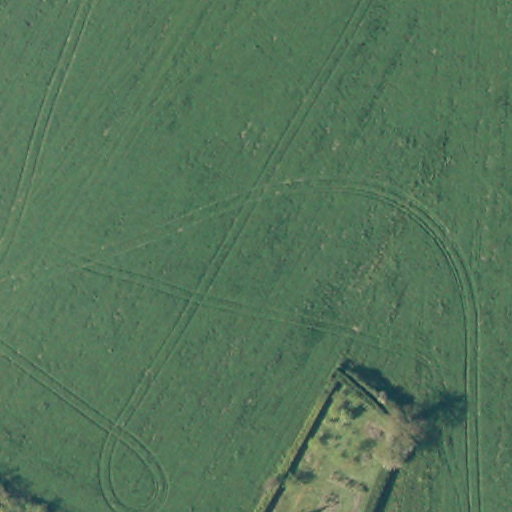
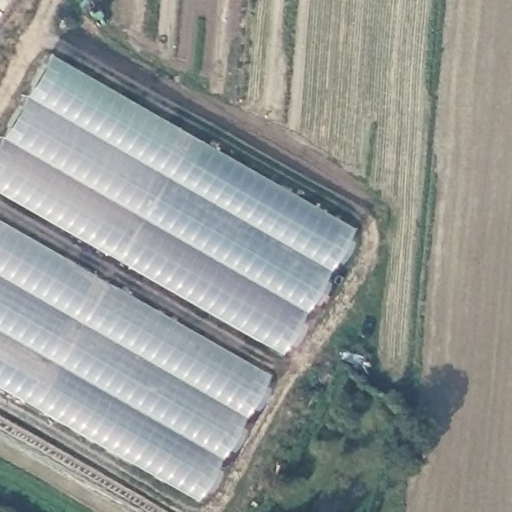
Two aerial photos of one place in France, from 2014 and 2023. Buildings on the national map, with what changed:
new [(0,188),(0,137),(48,54),(352,227),(281,351),(0,188)]
new [(0,384),(0,220),(267,373),(199,499),(0,384)]

